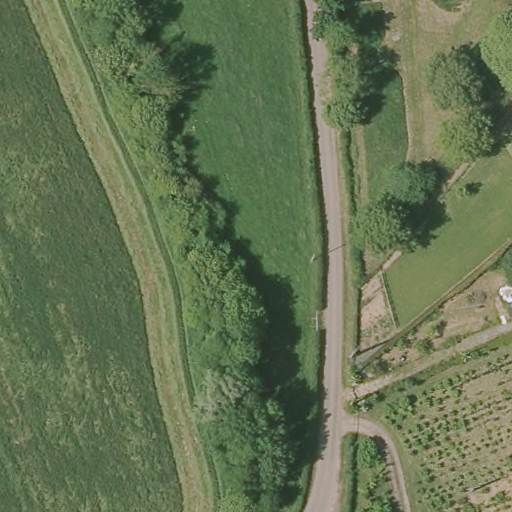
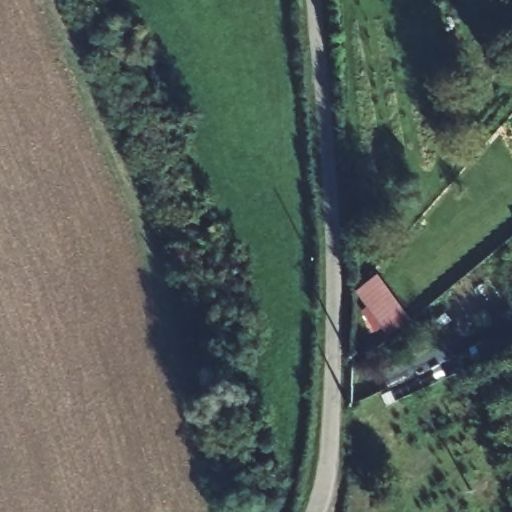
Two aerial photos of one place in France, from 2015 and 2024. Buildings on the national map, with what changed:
new [(388,336),(381,327),(355,290),(375,276),(400,312),(407,321),(388,336)]

